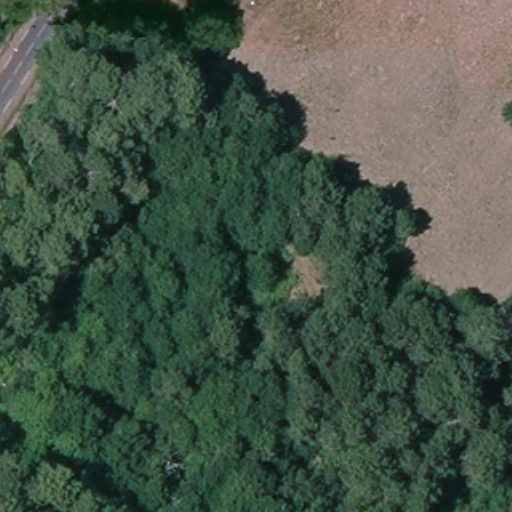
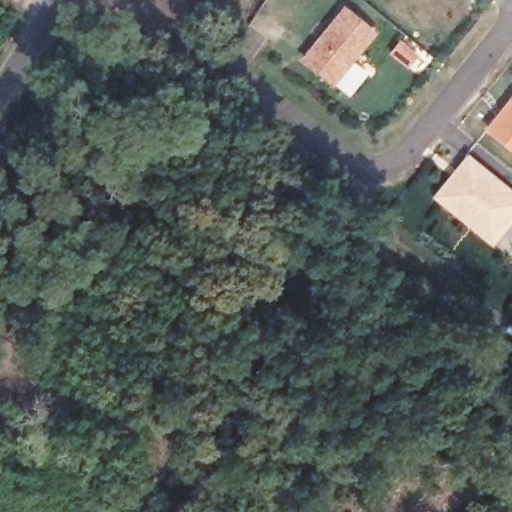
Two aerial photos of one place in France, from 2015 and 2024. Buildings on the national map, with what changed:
new [(302,61),(346,6),(378,33),(334,86),(302,61)]
new [(487,131),(512,99),(512,152),(487,131)]
new [(467,226),(433,198),(468,156),(512,191),(512,223),(494,245),(468,225),(467,226)]

